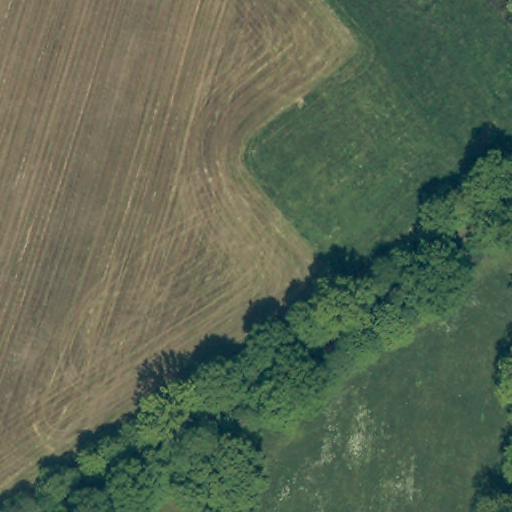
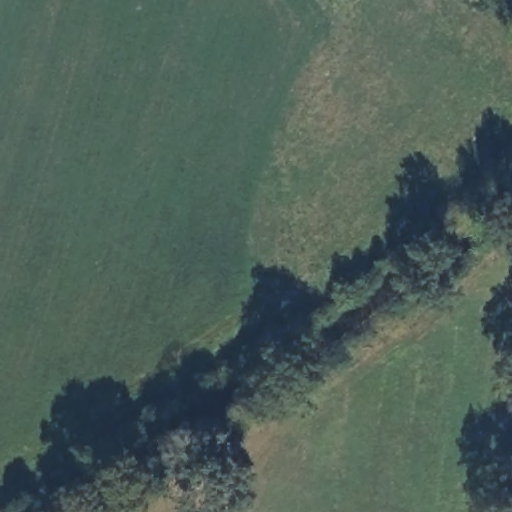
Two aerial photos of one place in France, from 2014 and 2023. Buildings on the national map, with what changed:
[]

